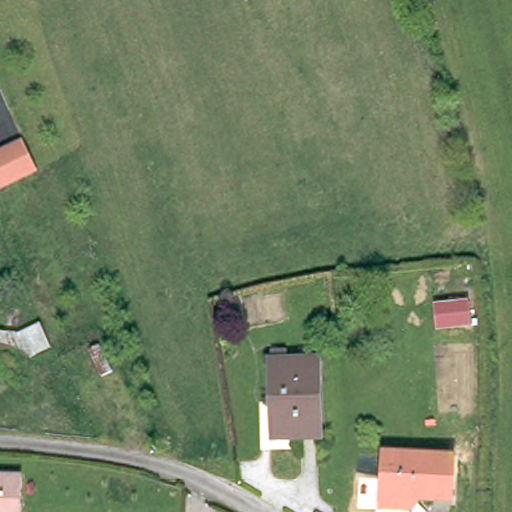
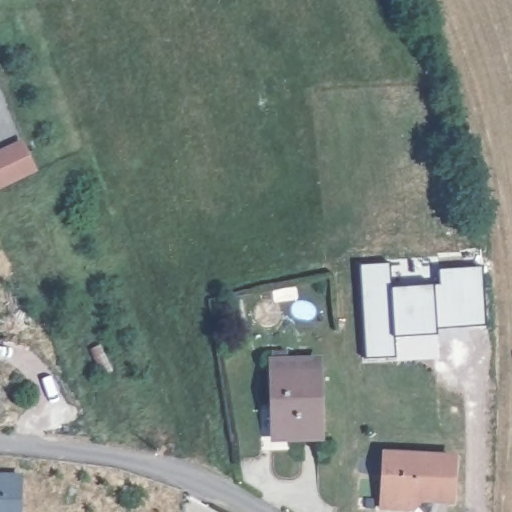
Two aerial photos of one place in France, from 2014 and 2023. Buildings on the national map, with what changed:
unchanged [(31,157),(44,183),(43,184),(3,205),(0,199),(0,172),(30,156),(31,157)]
new [(395,337),(396,357),(363,359),(358,266),(392,264),(393,287),(443,284),(447,335),(395,337)]
demolished [(441,308),(483,305),(484,327),(444,331),(441,308)]
unchanged [(320,441),(281,444),(281,440),(286,439),(284,407),(278,407),(276,357),(291,356),(291,367),(317,365),(320,364),(325,440),(320,441)]
unchanged [(389,453),(457,456),(456,500),(423,499),(423,506),(418,511),(387,510),(389,453)]
unchanged [(27,480),(26,505),(26,512),(0,512),(0,479),(3,479),(27,480)]
demolished [(134,491),(129,512),(125,512),(105,507),(110,486),(134,491)]

